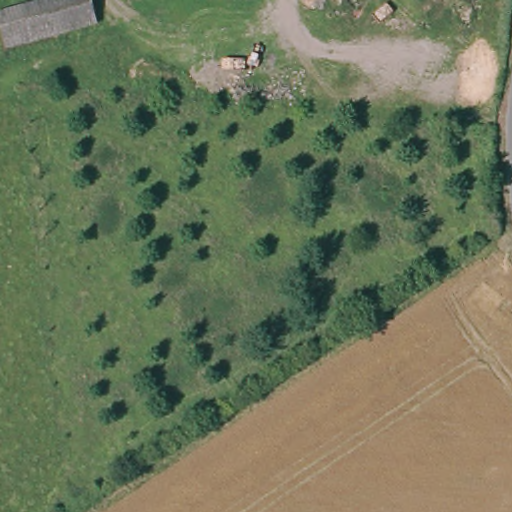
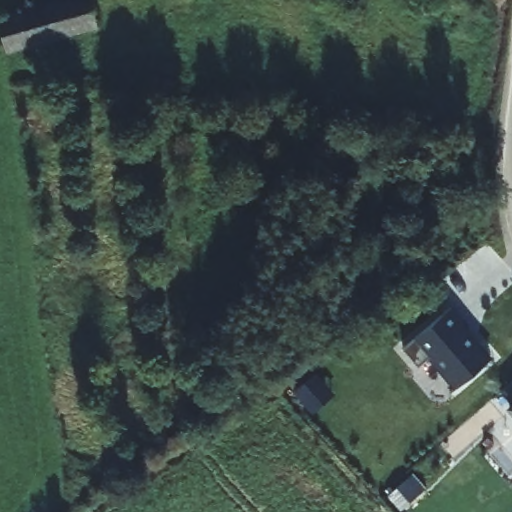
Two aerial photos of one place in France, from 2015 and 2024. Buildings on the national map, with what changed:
unchanged [(7,51),(0,27),(0,13),(46,0),(91,0),(99,26),(7,51)]
new [(465,320),(462,322),(492,355),(452,388),(426,356),(417,364),(404,346),(452,305),(465,320)]
new [(502,390),(512,381),(512,400),(502,390)]
new [(507,406),(512,400),(512,413),(507,406)]

